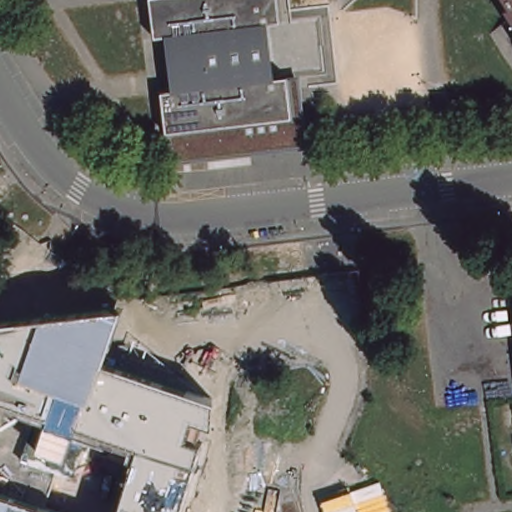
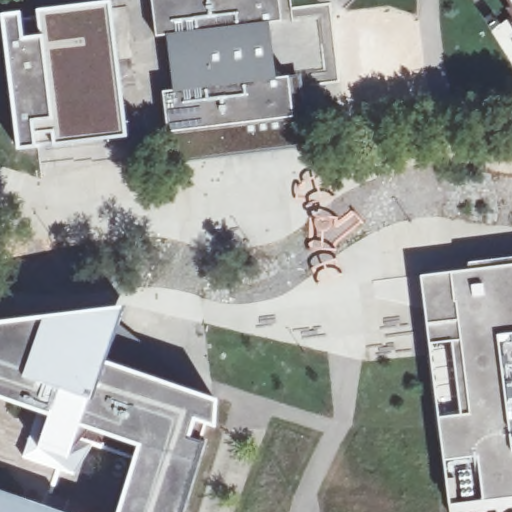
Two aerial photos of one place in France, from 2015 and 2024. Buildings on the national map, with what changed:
new [(36,147),(18,150),(1,14),(21,11),(23,20),(38,19),(36,10),(110,0),(128,136),(53,146),(36,147)]
unchanged [(157,0),(276,0),(279,25),(261,28),(267,81),(286,80),(291,120),(166,135),(161,95),(178,94),(170,40),(154,41),(149,1),(157,0)]
unchanged [(511,4),(512,2),(512,6),(511,4)]
new [(449,504),(421,275),(512,264),(512,496),(449,504)]
unchanged [(206,422),(198,442),(203,443),(181,512),(119,512),(136,459),(89,445),(71,474),(59,470),(47,506),(62,512),(0,512),(0,323),(125,307),(104,364),(215,401),(213,425),(206,422)]

